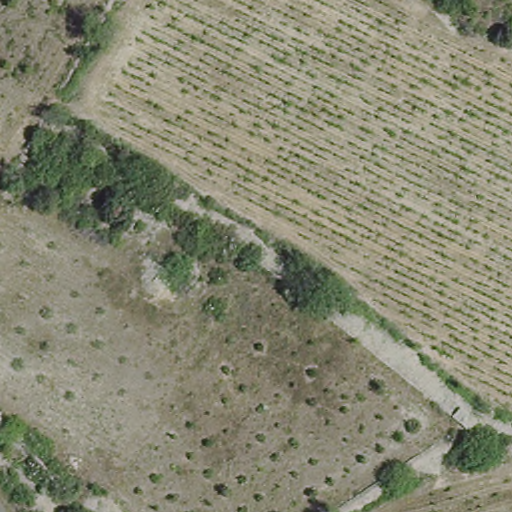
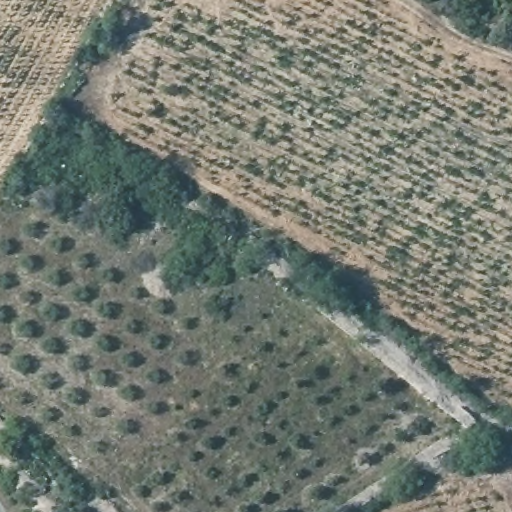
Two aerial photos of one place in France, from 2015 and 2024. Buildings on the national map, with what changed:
unchanged [(465,404),(478,421),(466,429),(455,414),(465,404)]

